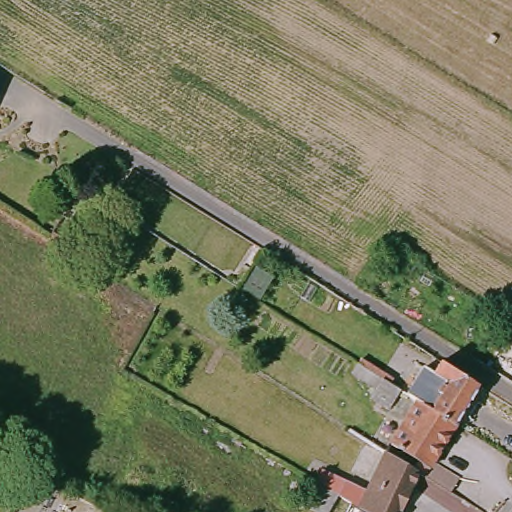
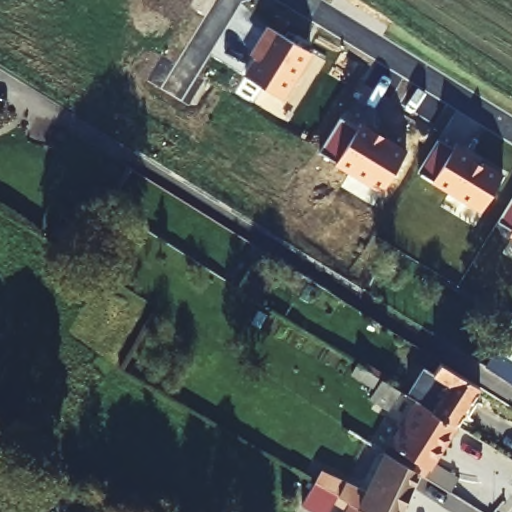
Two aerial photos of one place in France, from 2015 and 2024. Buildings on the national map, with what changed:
new [(254,57),(249,55),(267,25),(313,54),(285,100),(243,75),(254,57)]
new [(342,119),(358,129),(362,122),(408,150),(382,193),(335,164),(337,161),(320,151),(342,119)]
new [(440,142),(454,151),(456,147),(504,176),(482,211),(432,180),(419,172),(440,142)]
unchanged [(71,221),(83,201),(95,209),(83,228),(71,221)]
new [(512,201),(512,228),(500,221),(512,201)]
new [(512,230),(512,237),(508,235),(512,230)]
unchanged [(255,268),(272,278),(261,296),(244,285),(255,268)]
unchanged [(472,390),(477,392),(468,407),(463,404),(457,415),(417,390),(410,386),(406,383),(425,355),(434,361),(440,351),(481,377),(472,390)]
unchanged [(386,359),(406,372),(400,380),(386,403),(372,394),(373,391),(369,388),(375,379),(351,364),(358,353),(380,367),(386,359)]
unchanged [(434,451),(462,468),(452,483),(418,462),(387,442),(385,441),(417,390),(457,415),(434,451)]
unchanged [(302,496),(315,472),(322,459),(367,483),(387,442),(418,462),(394,512),(382,512),(350,493),(338,486),(325,508),(302,496)]
unchanged [(350,493),(382,512),(341,512),(350,493)]

